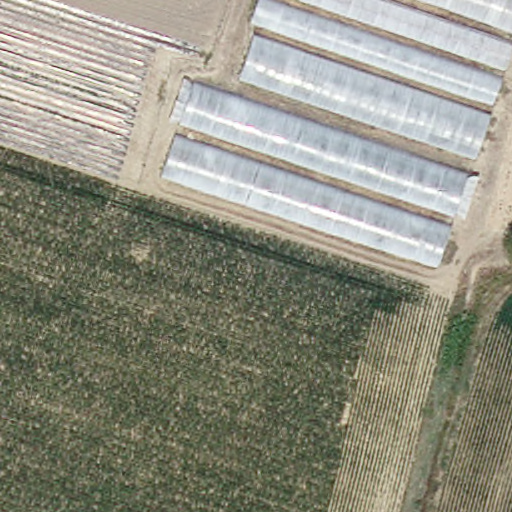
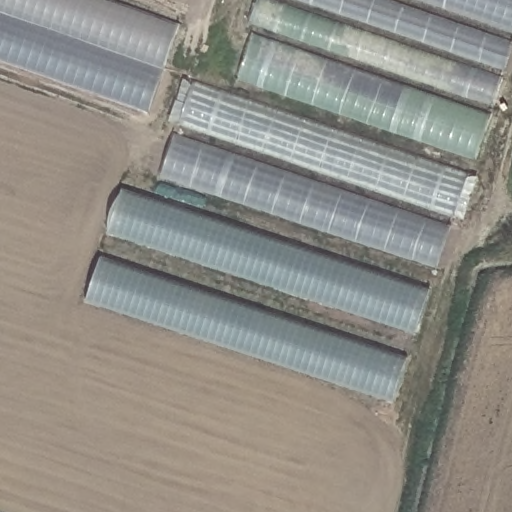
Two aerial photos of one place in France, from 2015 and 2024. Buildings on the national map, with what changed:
new [(180,22),(151,110),(0,58),(0,0),(116,0),(180,22)]
unchanged [(257,21),(249,18),(255,0),(512,0),(512,52),(476,155),(240,76),(257,21)]
unchanged [(437,264),(162,173),(192,78),(469,172),(437,264)]
new [(109,230),(124,186),(430,288),(415,332),(109,230)]
new [(86,299),(101,255),(407,357),(392,401),(86,299)]

